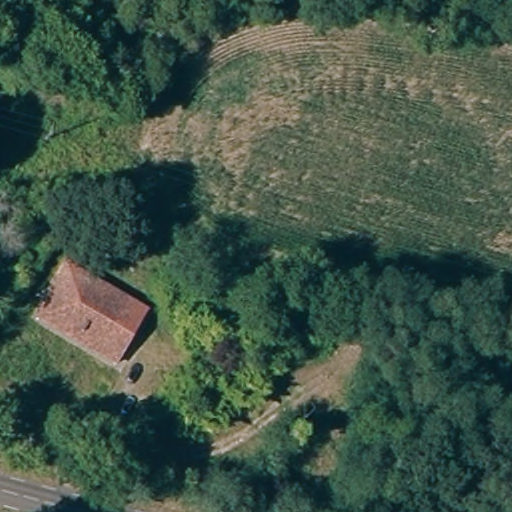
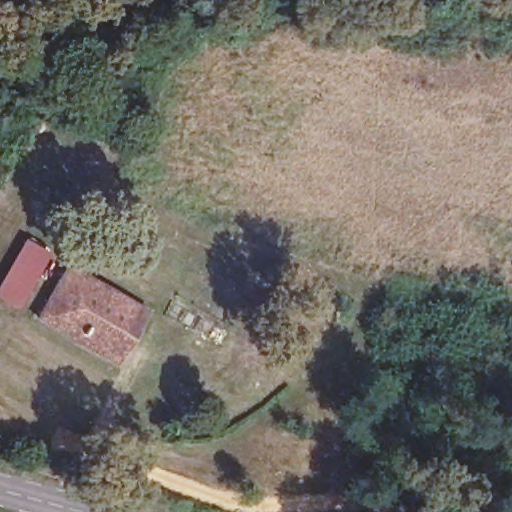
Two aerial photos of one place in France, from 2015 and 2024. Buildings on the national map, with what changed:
new [(26,238),(50,253),(17,308),(0,297),(0,279),(26,238)]
unchanged [(145,315),(117,363),(40,318),(69,269),(145,315)]

